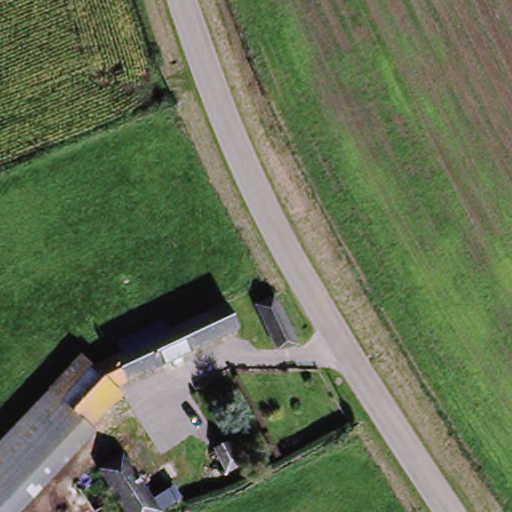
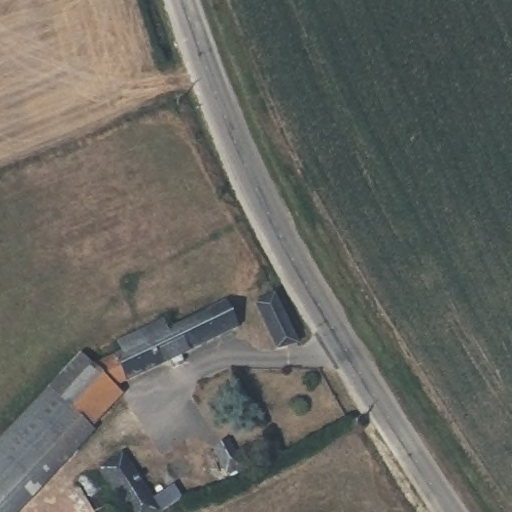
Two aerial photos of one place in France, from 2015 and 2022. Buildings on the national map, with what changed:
unchanged [(275,348),(255,300),(271,294),(285,324),(292,341),(275,348)]
unchanged [(158,371),(160,379),(149,384),(146,377),(97,398),(91,406),(68,386),(73,384),(101,372),(95,361),(139,341),(145,353),(203,326),(212,347),(158,371)]
unchanged [(0,500),(0,438),(53,374),(68,386),(91,406),(102,414),(62,461),(16,512),(14,512),(4,504),(0,500)]
unchanged [(221,478),(218,479),(202,453),(211,449),(224,470),(226,474),(221,478)]
unchanged [(125,455),(155,512),(128,512),(104,464),(125,455)]

